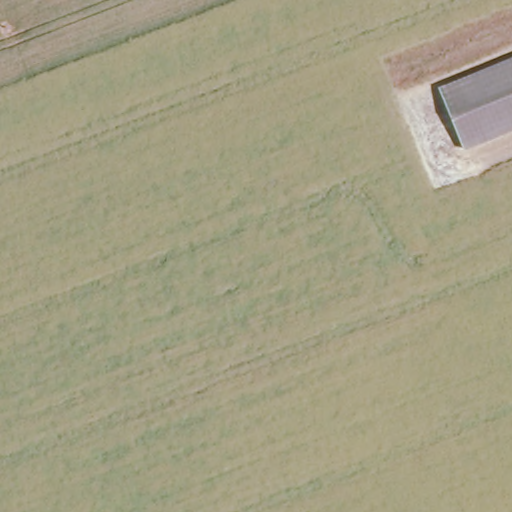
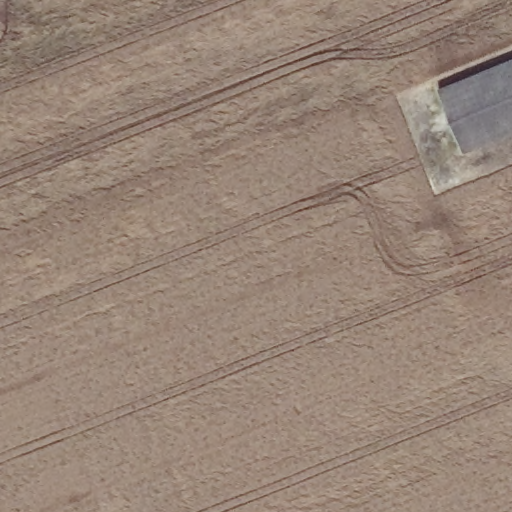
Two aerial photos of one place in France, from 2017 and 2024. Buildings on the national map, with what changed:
unchanged [(465,154),(436,86),(512,55),(512,134),(465,154)]

